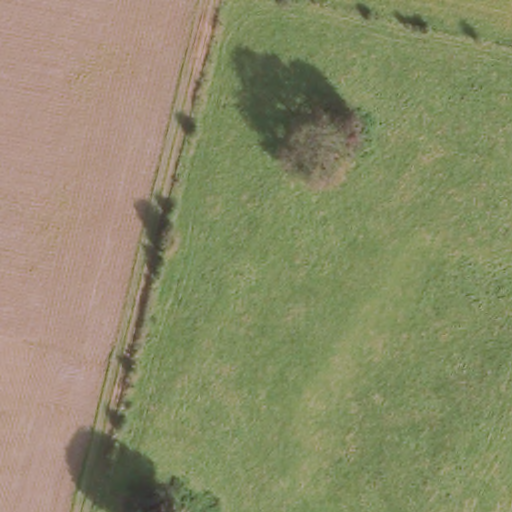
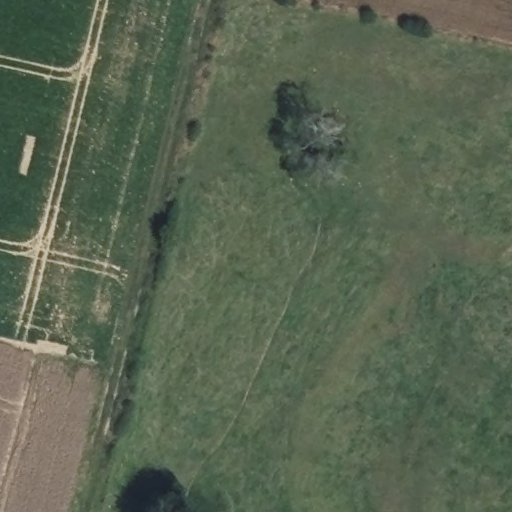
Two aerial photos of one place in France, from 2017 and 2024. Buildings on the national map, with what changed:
[]

